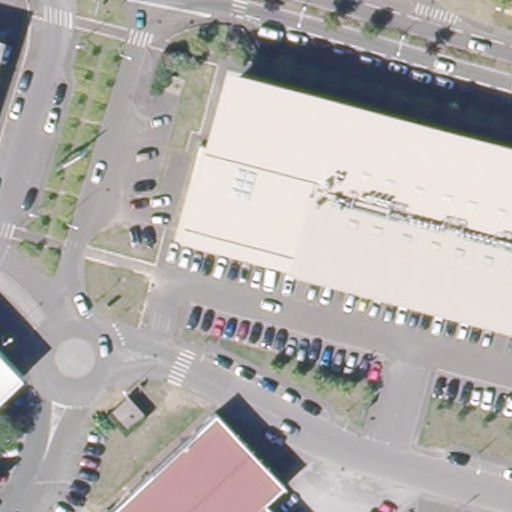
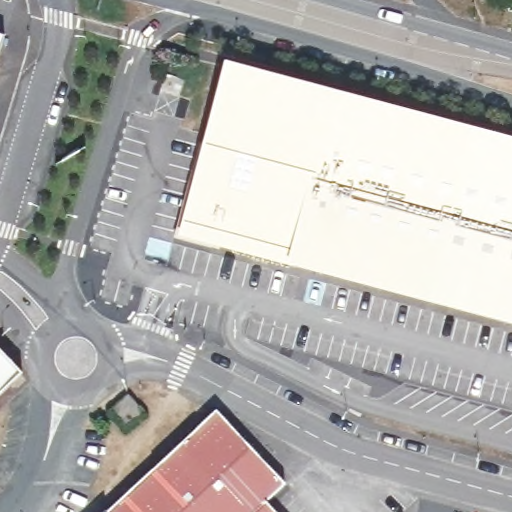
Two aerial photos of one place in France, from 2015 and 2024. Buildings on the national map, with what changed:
unchanged [(12,35),(0,74),(0,31),(12,35)]
unchanged [(332,111),(294,253),(185,223),(204,150),(221,81),(332,111)]
unchanged [(322,249),(357,118),(359,110),(466,139),(430,278),(322,249)]
unchanged [(427,289),(294,253),(332,111),(357,118),(322,249),(430,278),(427,289)]
unchanged [(512,300),(430,278),(466,139),(512,151),(512,300)]
unchanged [(512,300),(512,312),(427,289),(430,278),(512,300)]
unchanged [(6,345),(0,344),(0,338),(6,345)]
unchanged [(6,345),(32,372),(0,401),(0,344),(6,345)]
unchanged [(155,412),(139,425),(125,407),(136,398),(144,399),(155,412)]
unchanged [(268,495),(249,512),(107,512),(218,410),(286,481),(268,495)]
unchanged [(284,512),(249,512),(268,495),(284,512)]

